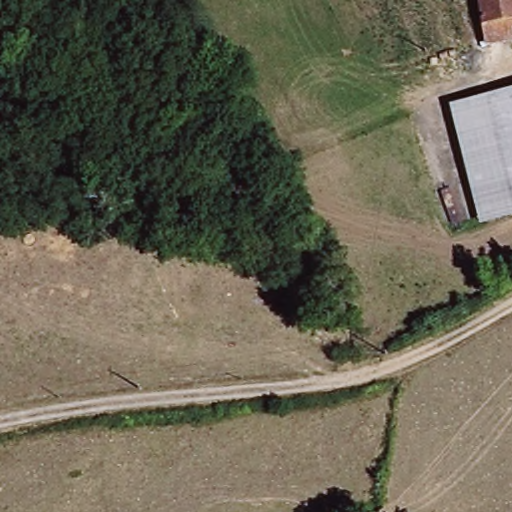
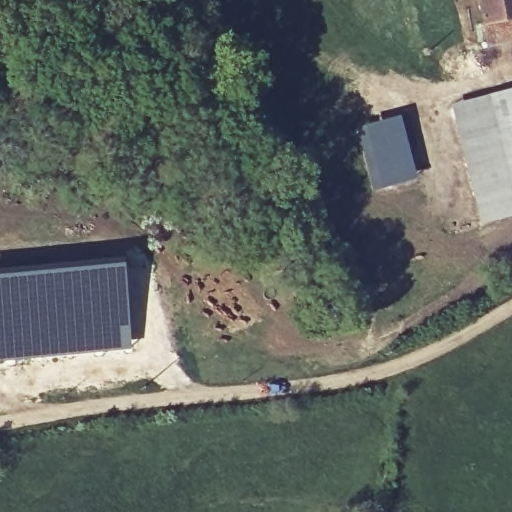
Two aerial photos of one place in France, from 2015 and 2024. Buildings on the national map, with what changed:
unchanged [(487,31),(480,27),(475,22),(477,14),(487,7),(487,0),(512,0),(512,26),(487,31)]
unchanged [(452,105),(512,88),(512,220),(479,229),(452,105)]
new [(399,115),(417,179),(373,190),(356,127),(399,115)]
new [(132,350),(0,362),(0,275),(123,263),(132,350)]

